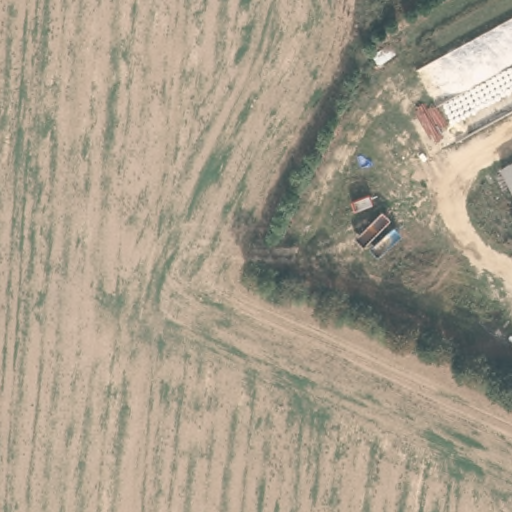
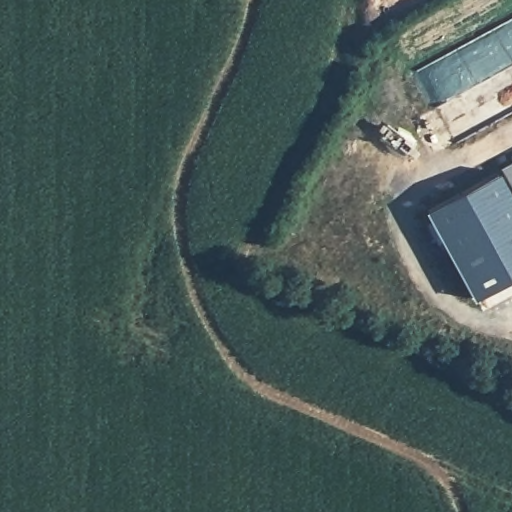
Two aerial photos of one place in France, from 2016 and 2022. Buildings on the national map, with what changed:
unchanged [(500,170),(512,163),(512,191),(500,170)]
new [(498,171),(512,197),(512,279),(473,301),(425,212),(498,171)]

